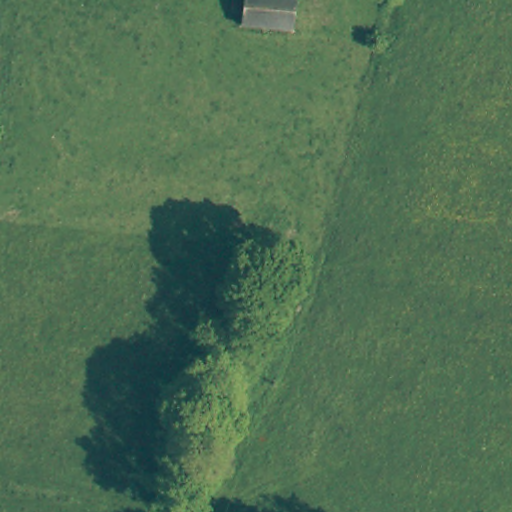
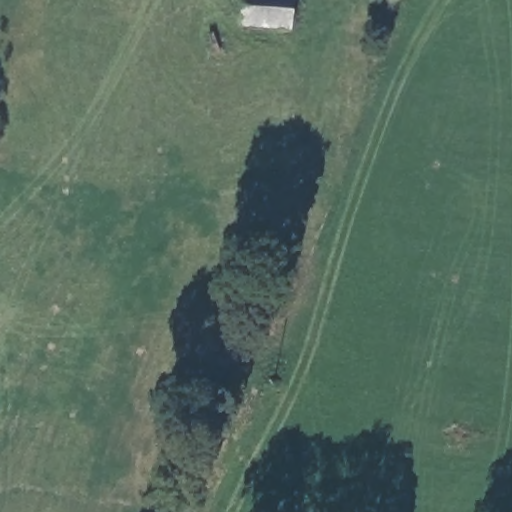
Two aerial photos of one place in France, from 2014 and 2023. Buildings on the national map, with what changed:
unchanged [(239,28),(240,0),(297,0),(292,33),(239,28)]

